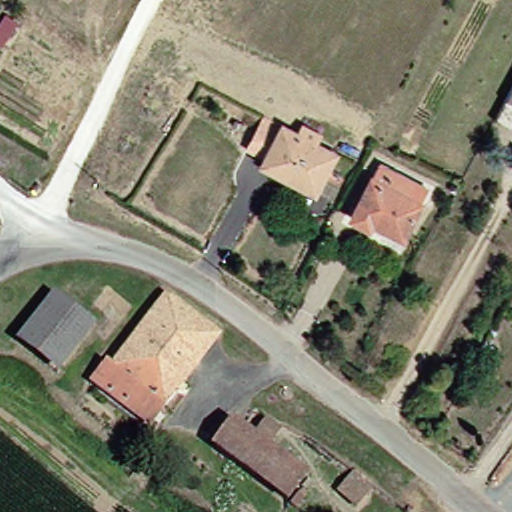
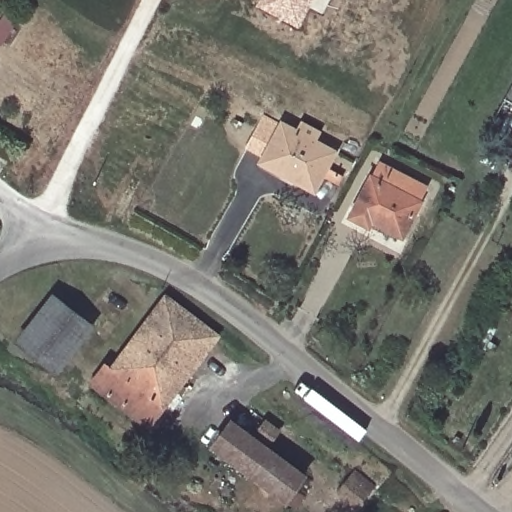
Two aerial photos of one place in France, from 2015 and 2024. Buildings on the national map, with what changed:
new [(257,5),(260,0),(313,0),(298,27),(257,5)]
unchanged [(494,99),(512,65),(512,108),(494,99)]
unchanged [(335,151),(313,191),(260,162),(263,155),(249,148),(246,146),(264,114),(266,114),(281,123),(335,151)]
unchanged [(418,181),(391,232),(361,215),(357,222),(339,212),(369,155),(418,181)]
unchanged [(47,294),(89,326),(51,374),(10,342),(47,294)]
unchanged [(144,427),(86,383),(100,364),(105,369),(161,295),(214,335),(144,427)]
unchanged [(298,474),(279,501),(206,448),(226,421),(298,474)]
unchanged [(260,421),(273,431),(264,444),(251,434),(260,421)]
unchanged [(355,507),(338,492),(355,472),(372,486),(355,507)]

